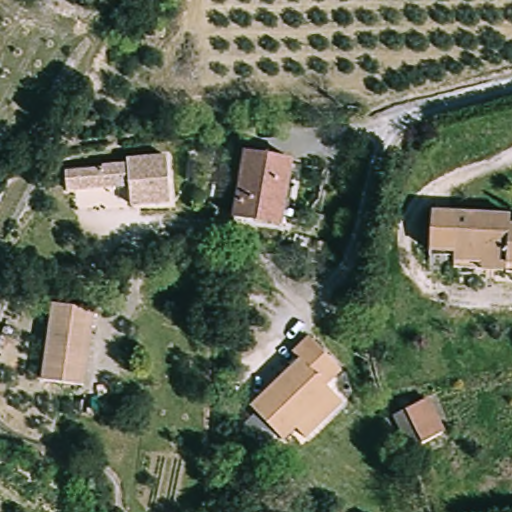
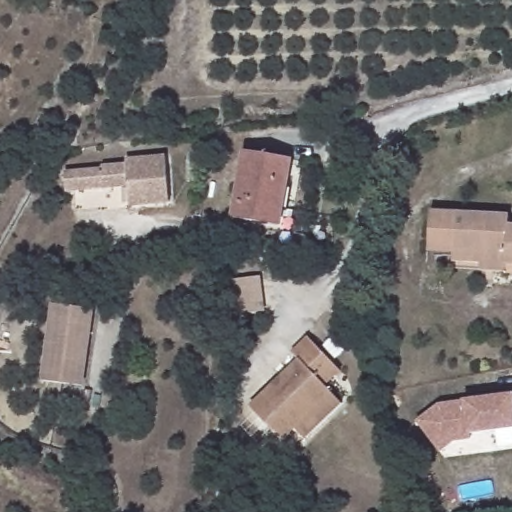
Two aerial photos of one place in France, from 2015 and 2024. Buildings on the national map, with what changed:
unchanged [(280,225),(233,218),(244,151),(291,159),(280,225)]
unchanged [(169,203),(128,206),(126,185),(62,190),(61,173),(100,169),(99,166),(125,165),(124,160),(165,157),(169,203)]
unchanged [(480,267),(480,259),(452,258),(452,251),(453,247),(435,246),(428,245),(430,207),(433,207),(510,210),(509,220),(512,221),(512,268),(480,267)]
unchanged [(82,386),(42,381),(53,304),(92,309),(82,386)]
unchanged [(342,404),(304,439),(294,429),(282,441),(250,408),(300,360),(293,353),(309,338),(340,370),(325,385),(342,404)]
new [(464,400),(512,394),(512,430),(471,435),(471,439),(455,441),(440,453),(417,421),(440,403),(464,400)]
demolished [(394,415),(425,399),(442,433),(410,449),(399,429),(393,416),(394,415)]

